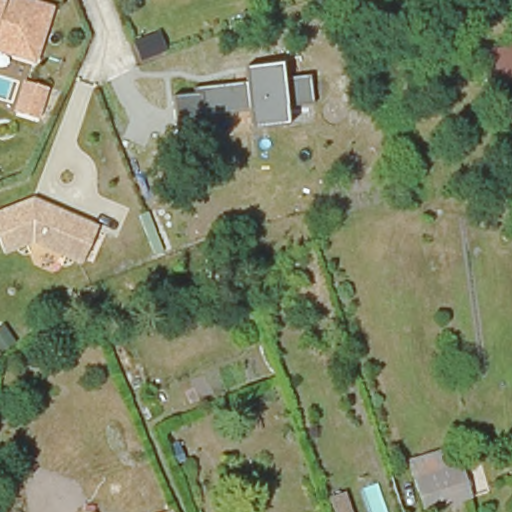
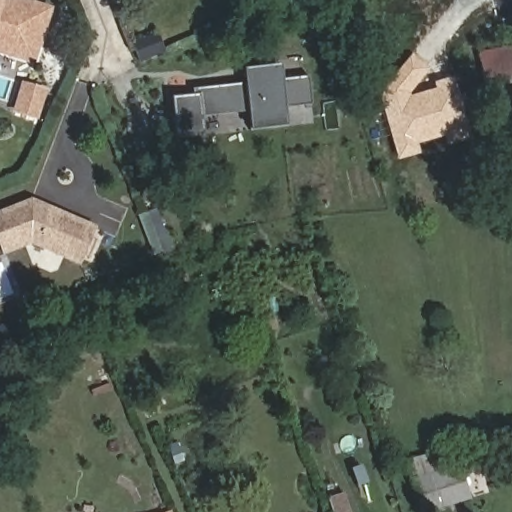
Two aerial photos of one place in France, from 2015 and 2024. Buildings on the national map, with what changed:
unchanged [(0,54),(0,0),(7,0),(11,1),(12,0),(30,0),(48,7),(30,64),(0,54)]
new [(160,33),(167,52),(144,61),(137,42),(160,33)]
new [(512,80),(486,83),(482,54),(512,49),(512,80)]
new [(417,144),(420,152),(397,160),(379,95),(411,54),(428,69),(409,93),(409,95),(435,89),(434,82),(454,77),(470,139),(447,145),(444,137),(417,144)]
unchanged [(311,102),(289,105),(283,107),(285,124),(251,128),(249,112),(248,111),(200,117),(202,131),(178,134),(174,97),(196,95),(195,89),(245,85),(248,85),(246,67),(279,65),(281,79),(285,79),(309,76),(311,102)]
unchanged [(38,116),(12,111),(20,81),(44,87),(38,116)]
unchanged [(78,261),(27,240),(3,254),(0,247),(0,209),(32,197),(92,223),(78,261)]
unchanged [(410,461),(444,449),(453,471),(465,470),(469,501),(439,512),(425,512),(410,461)]
unchanged [(329,501),(347,491),(354,512),(334,512),(329,501)]

